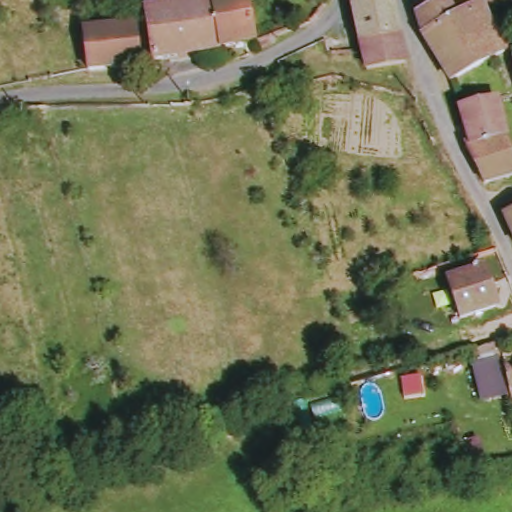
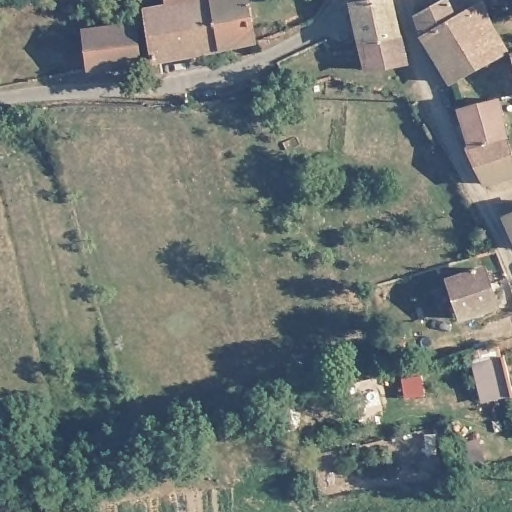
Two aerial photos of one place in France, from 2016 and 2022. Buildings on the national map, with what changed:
unchanged [(168,10),(165,0),(210,0),(211,3),(220,51),(158,62),(150,13),(168,10)]
unchanged [(211,3),(240,0),(244,0),(255,44),(220,51),(211,3)]
unchanged [(353,5),(390,0),(399,38),(360,45),(353,5)]
unchanged [(455,75),(445,78),(424,39),(414,14),(446,1),(454,18),(461,12),(479,0),(481,0),(490,18),(507,45),(455,75)]
unchanged [(461,12),(456,0),(479,0),(461,12)]
unchanged [(81,31),(135,24),(141,64),(88,71),(81,31)]
unchanged [(360,45),(399,38),(405,65),(365,72),(361,51),(360,45)]
unchanged [(512,51),(512,59),(510,51),(512,51)]
unchanged [(465,151),(469,149),(456,113),(469,109),(493,103),(496,131),(512,161),(512,180),(485,187),(465,151)]
unchanged [(502,213),(512,212),(512,237),(502,213)]
unchanged [(487,267),(500,304),(466,316),(454,279),(487,267)]
unchanged [(512,353),(512,405),(481,407),(471,363),(498,358),(512,353)]

